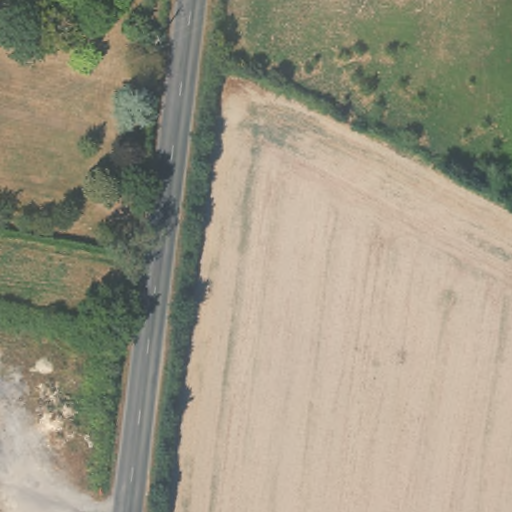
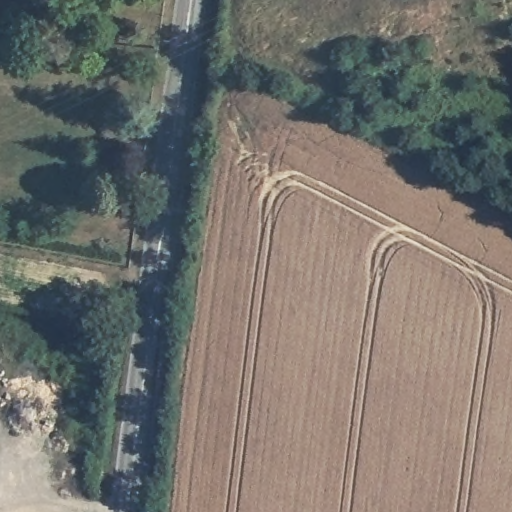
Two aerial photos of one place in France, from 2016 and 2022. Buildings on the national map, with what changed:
[]

